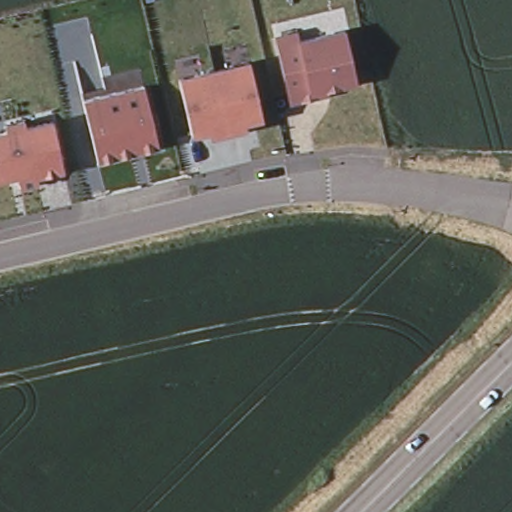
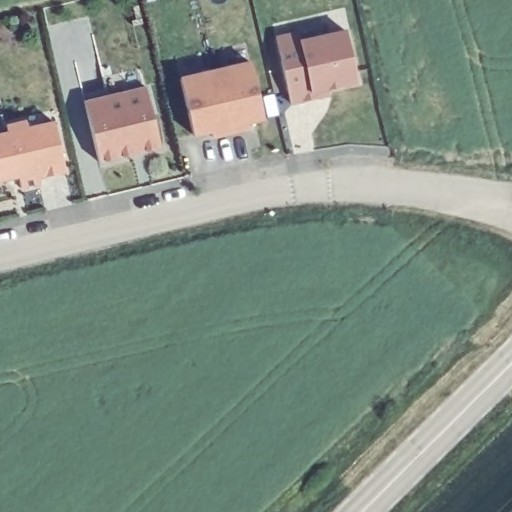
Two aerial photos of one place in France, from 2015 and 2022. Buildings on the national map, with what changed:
unchanged [(310,101),(287,107),(272,41),(295,36),(297,45),(342,34),(354,86),(325,92),(327,98),(310,101)]
unchanged [(249,132),(231,136),(217,74),(252,66),(265,122),(254,125),(247,126),(249,132)]
unchanged [(194,138),(182,82),(217,74),(231,136),(214,140),(212,134),(205,136),(194,138)]
unchanged [(86,105),(120,96),(147,90),(162,151),(100,166),(86,105)]
unchanged [(0,137),(4,136),(2,129),(22,125),(24,131),(50,126),(62,176),(35,182),(37,189),(18,193),(15,181),(5,183),(0,184),(0,137)]

